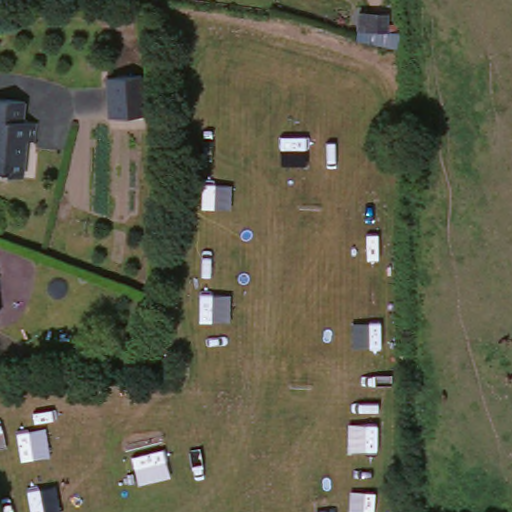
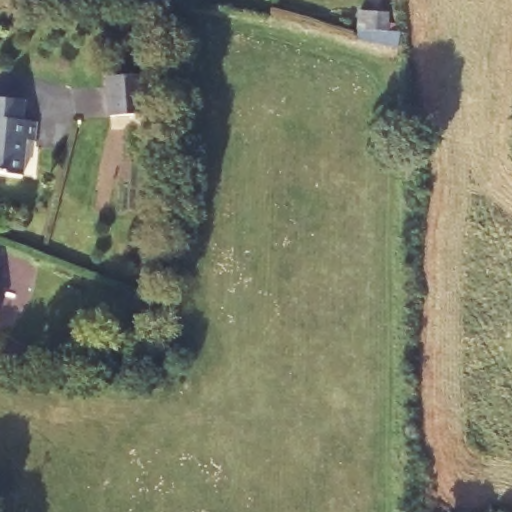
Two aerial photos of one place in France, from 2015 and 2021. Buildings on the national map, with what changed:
unchanged [(361,13),(388,15),(387,33),(359,30),(361,13)]
unchanged [(108,78),(143,77),(144,118),(108,119),(108,78)]
unchanged [(29,106),(28,126),(42,127),(40,146),(31,146),(28,180),(0,179),(0,104),(29,106)]

